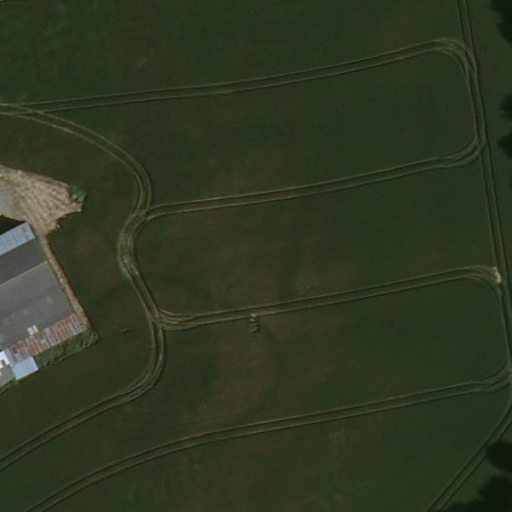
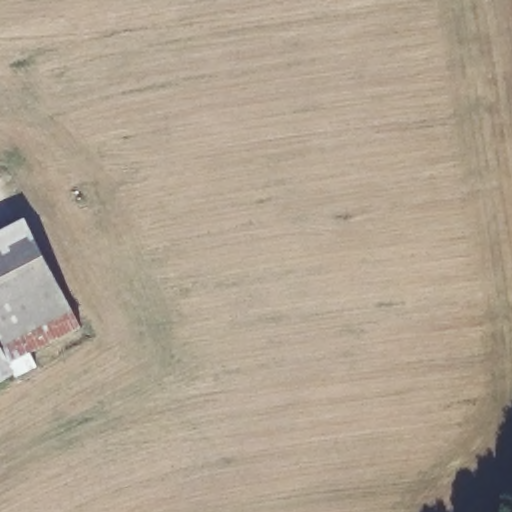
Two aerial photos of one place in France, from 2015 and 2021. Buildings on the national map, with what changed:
unchanged [(5,347),(0,333),(0,236),(31,221),(76,313),(5,347)]
unchanged [(0,358),(0,333),(5,347),(7,353),(0,358)]

